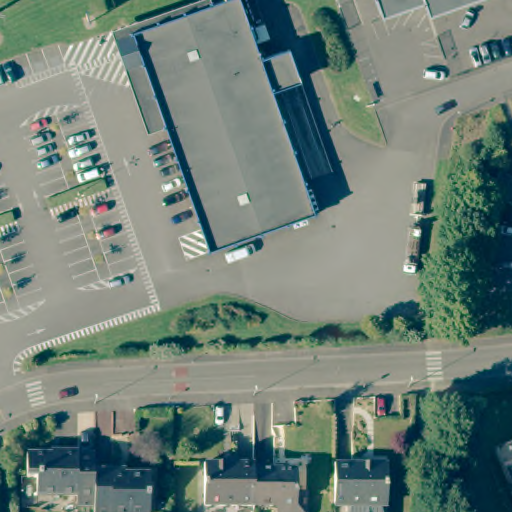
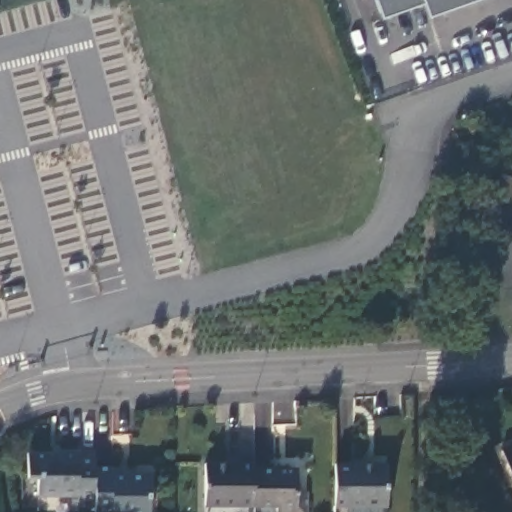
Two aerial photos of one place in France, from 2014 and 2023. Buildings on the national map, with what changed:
demolished [(132,34),(212,7),(235,0),(240,0),(261,61),(289,51),(298,78),(271,87),(315,216),(209,254),(165,130),(132,34)]
unchanged [(407,2),(414,0),(472,0),(428,15),(423,1),(382,16),(376,0),(407,0),(407,2)]
unchanged [(407,2),(407,0),(414,0),(407,2)]
unchanged [(491,199),(498,180),(501,175),(512,179),(512,207),(491,199)]
unchanged [(506,450),(512,447),(512,464),(506,450)]
unchanged [(95,468),(95,506),(77,506),(77,494),(38,493),(38,477),(27,477),(27,454),(60,453),(60,450),(77,450),(77,453),(95,453),(95,468)]
unchanged [(335,502),(335,460),(387,460),(387,502),(386,502),(386,512),(348,512),(348,502),(335,502)]
unchanged [(95,468),(112,468),(112,473),(151,474),(150,512),(95,512),(95,506),(95,468)]
unchanged [(255,506),(255,511),(205,511),(205,469),(255,469),(255,506)]
unchanged [(297,493),(307,493),(307,512),(277,512),(277,506),(255,506),(255,469),(297,470),(297,493)]

